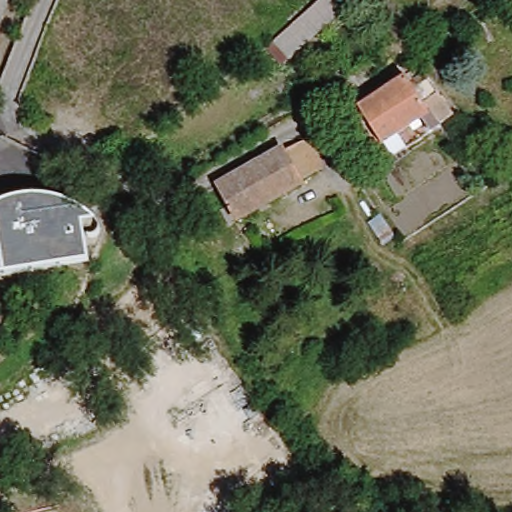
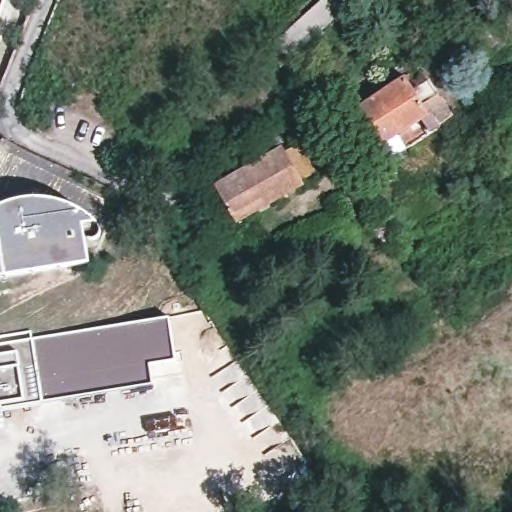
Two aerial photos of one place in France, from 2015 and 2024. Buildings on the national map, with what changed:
demolished [(1,0),(0,4),(0,0),(1,0)]
new [(5,0),(0,16),(0,0),(5,0)]
unchanged [(265,38),(310,0),(348,0),(283,64),(265,38)]
unchanged [(428,112),(400,129),(382,141),(380,142),(358,108),(404,78),(428,112)]
unchanged [(280,156),(302,143),(318,170),(295,183),(297,187),(233,222),(212,189),(278,153),(280,156)]
unchanged [(3,202),(13,199),(23,197),(36,198),(49,199),(61,203),(77,212),(91,225),(75,228),(79,248),(80,259),(81,266),(75,267),(62,269),(0,278),(0,203),(3,202)]
new [(177,358),(150,363),(154,386),(26,402),(0,407),(0,334),(31,329),(33,339),(168,318),(177,358)]

